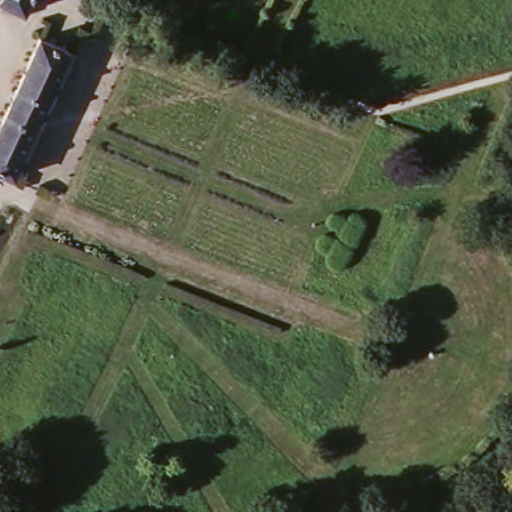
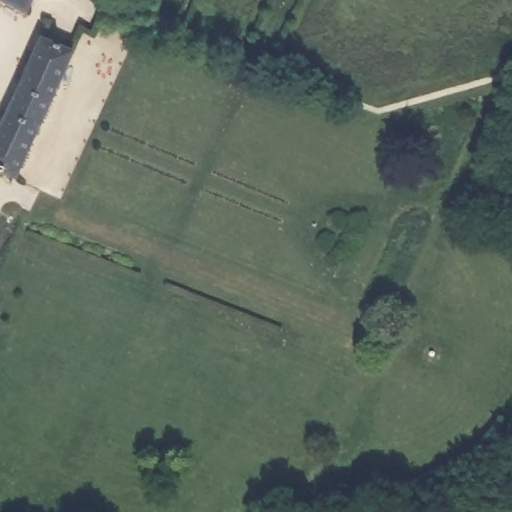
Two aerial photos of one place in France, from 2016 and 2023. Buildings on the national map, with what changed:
unchanged [(1,0),(33,0),(26,14),(1,0)]
unchanged [(14,187),(0,181),(0,137),(41,48),(72,61),(14,187)]

